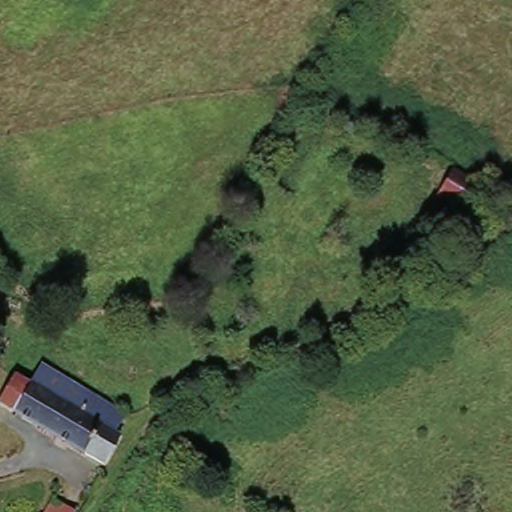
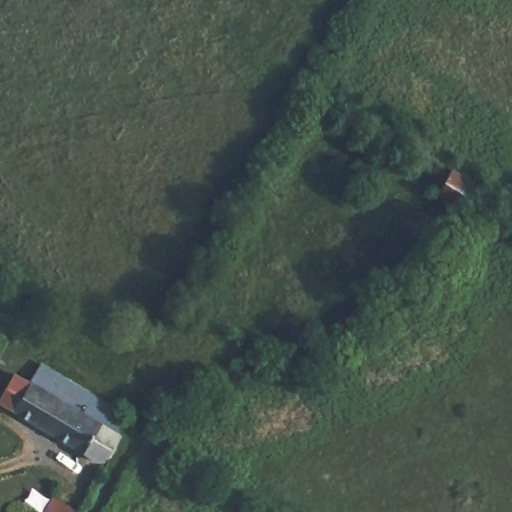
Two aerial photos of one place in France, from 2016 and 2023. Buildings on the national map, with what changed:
unchanged [(490,193),(477,222),(435,201),(448,174),(490,193)]
unchanged [(3,407),(21,377),(36,386),(48,369),(100,403),(133,424),(124,438),(131,440),(111,473),(17,415),(3,407)]

